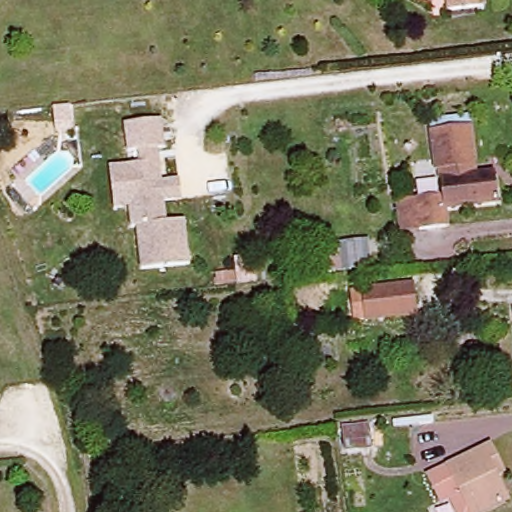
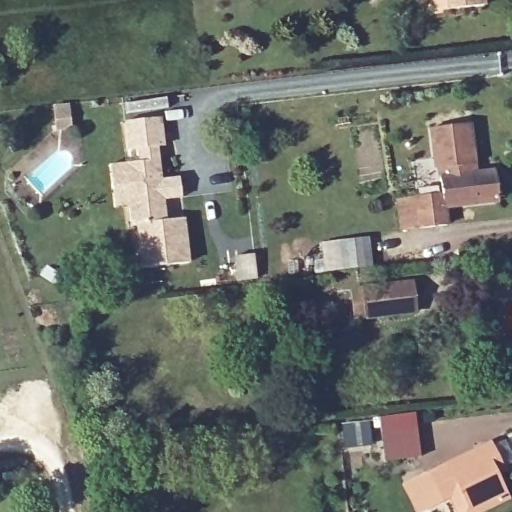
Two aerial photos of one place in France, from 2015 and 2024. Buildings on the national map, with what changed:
unchanged [(476,6),(439,9),(438,0),(475,0),(476,6)]
unchanged [(126,203),(110,205),(105,163),(138,160),(136,147),(125,147),(121,118),(161,114),(165,145),(159,146),(162,176),(180,174),(182,197),(164,199),(166,216),(186,214),(192,261),(140,267),(136,224),(129,225),(126,203)]
unchanged [(394,201),(411,199),(436,197),(436,171),(433,171),(428,132),(468,128),(473,173),(490,172),(493,201),(443,206),(443,227),(414,230),(397,232),(394,201)]
unchanged [(333,246),(362,242),(366,271),(336,274),(321,276),(317,248),(333,246)]
unchanged [(412,314),(361,318),(359,288),(408,283),(412,314)]
new [(415,411),(421,456),(384,462),(378,417),(415,411)]
unchanged [(342,423),(367,421),(369,445),(344,446),(342,423)]
unchanged [(436,503),(423,475),(487,444),(501,469),(492,474),(505,498),(478,512),(454,512),(448,497),(436,503)]

